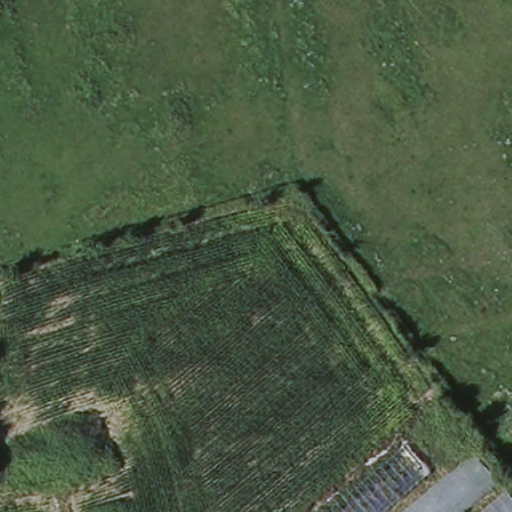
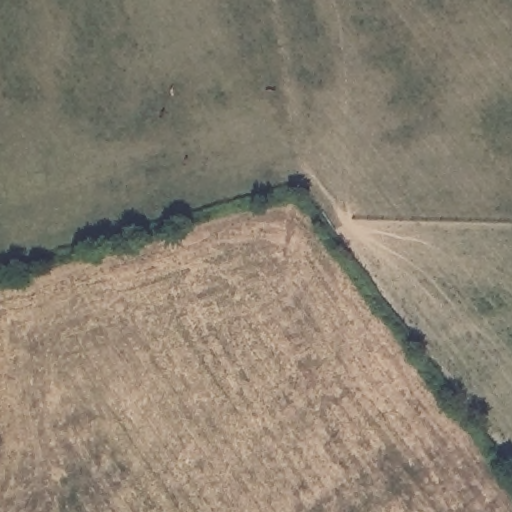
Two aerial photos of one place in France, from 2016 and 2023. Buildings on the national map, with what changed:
demolished [(403,442),(438,483),(475,452),(512,495),(512,512),(322,512),(403,442)]

